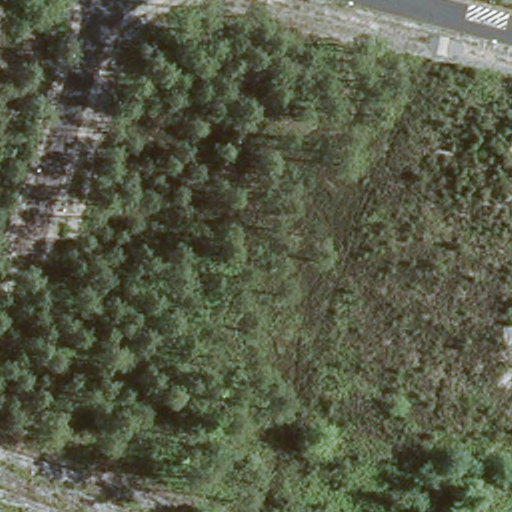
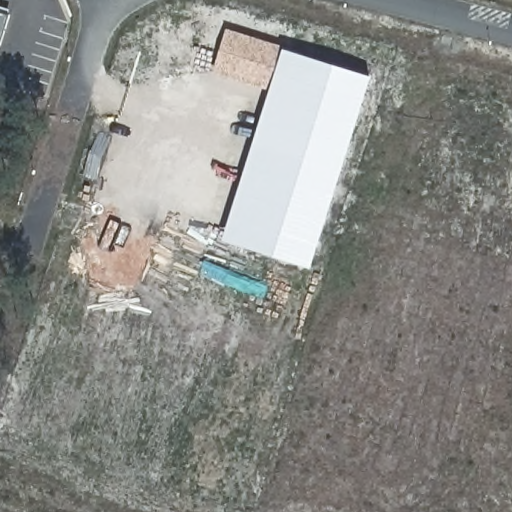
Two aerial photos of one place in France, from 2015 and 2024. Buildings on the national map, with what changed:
new [(0,31),(0,14),(5,15),(0,31)]
new [(212,71),(225,30),(282,48),(269,90),(212,71)]
new [(310,268),(221,240),(269,90),(282,48),(370,76),(310,268)]

